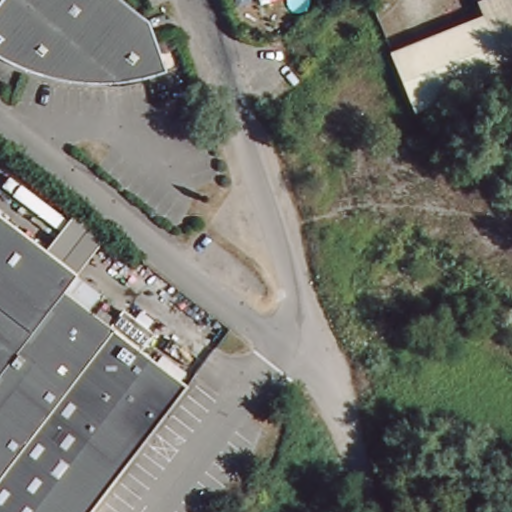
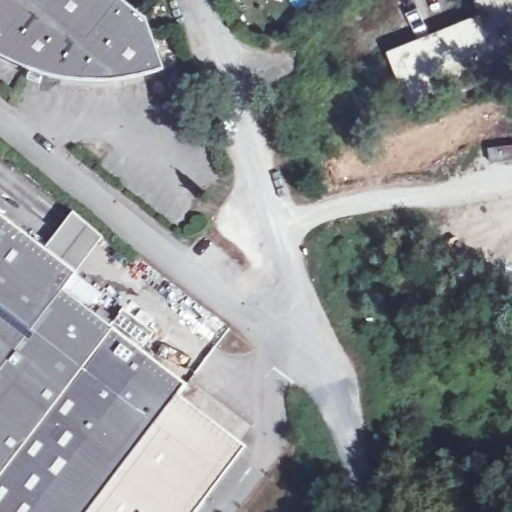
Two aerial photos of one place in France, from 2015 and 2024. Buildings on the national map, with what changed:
unchanged [(122,80),(92,81),(59,79),(20,72),(0,62),(0,0),(113,0),(136,20),(154,69),(122,80)]
unchanged [(484,15),(479,1),(482,0),(512,0),(512,69),(414,109),(391,53),(484,15)]
unchanged [(47,252),(77,213),(106,234),(75,274),(47,252)]
unchanged [(47,252),(75,274),(62,291),(90,312),(0,430),(0,216),(30,239),(47,252)]
unchanged [(186,384),(110,486),(90,512),(0,512),(0,430),(90,312),(139,349),(186,384)]
new [(197,512),(90,512),(110,486),(178,395),(246,449),(197,512)]

